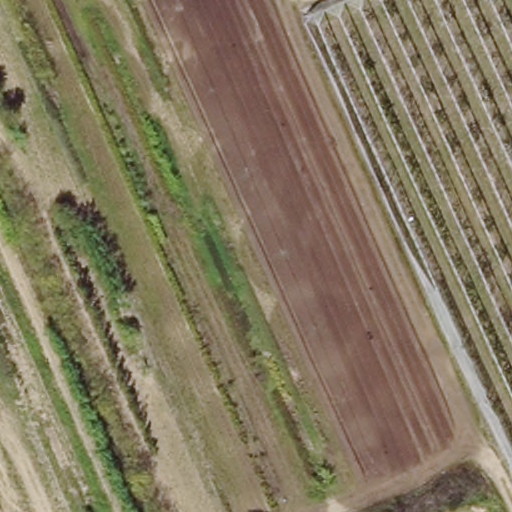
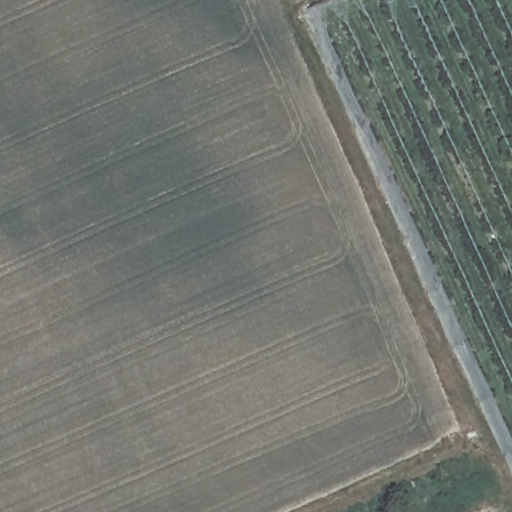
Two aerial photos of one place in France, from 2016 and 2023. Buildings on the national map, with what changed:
unchanged [(343,0),(512,0),(512,450),(308,16),(343,0)]

